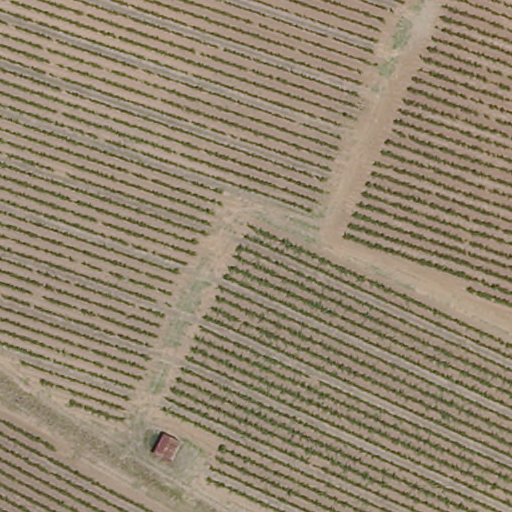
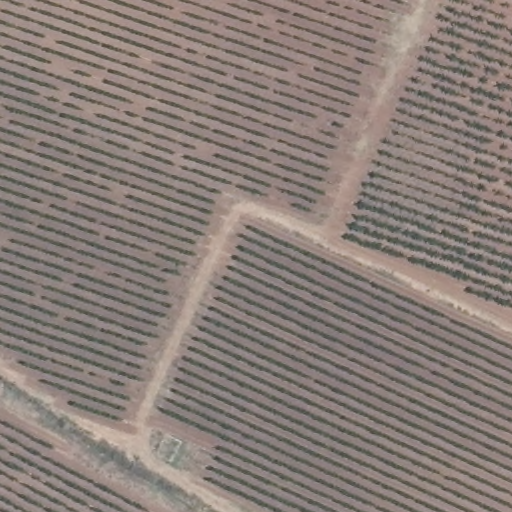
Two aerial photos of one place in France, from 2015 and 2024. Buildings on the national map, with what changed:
unchanged [(158,450),(170,429),(188,444),(176,460),(158,450)]

